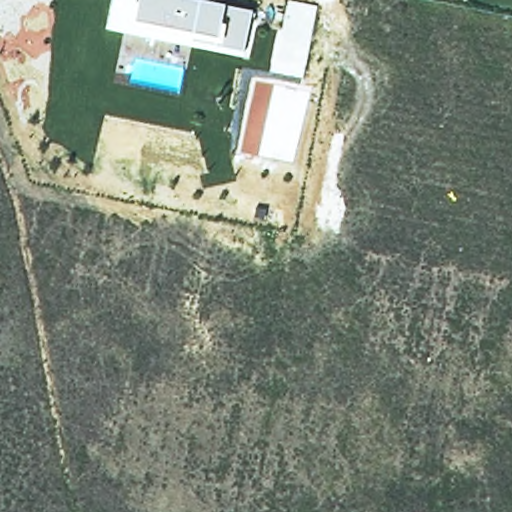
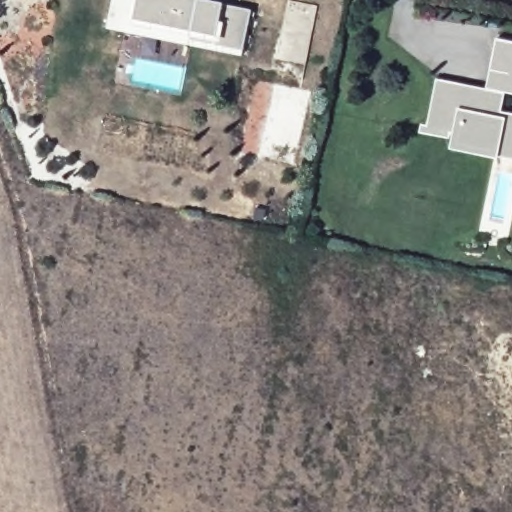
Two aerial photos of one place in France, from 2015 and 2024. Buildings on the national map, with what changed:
unchanged [(191,35),(131,24),(107,21),(111,0),(196,0),(226,6),(250,10),(241,52),(188,41),(191,35)]
new [(447,149),(449,139),(418,132),(419,125),(424,125),(434,79),(484,88),(494,38),(512,42),(512,95),(504,94),(501,111),(512,113),(512,162),(496,160),(447,149)]

